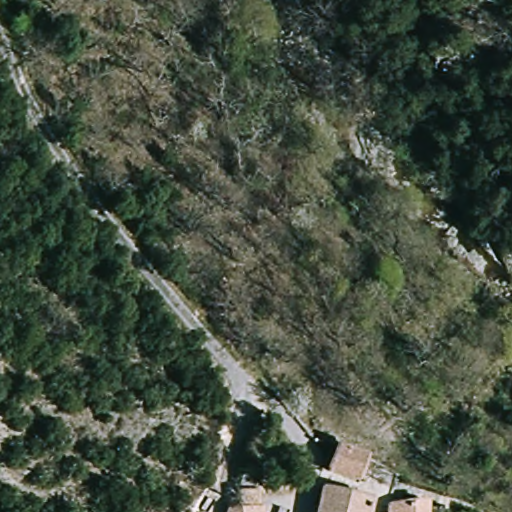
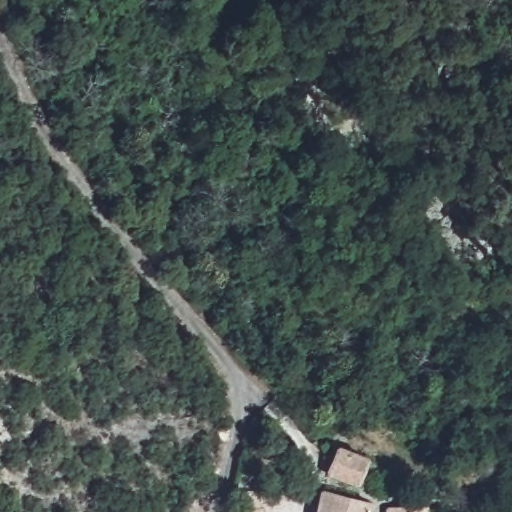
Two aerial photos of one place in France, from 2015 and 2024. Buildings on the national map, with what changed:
unchanged [(325,475),(333,447),(367,458),(358,486),(325,475)]
unchanged [(317,491),(366,502),(366,512),(313,512),(317,491)]
unchanged [(261,512),(227,512),(229,504),(261,504),(261,512)]
unchanged [(382,505),(426,505),(426,512),(382,512),(382,505)]

